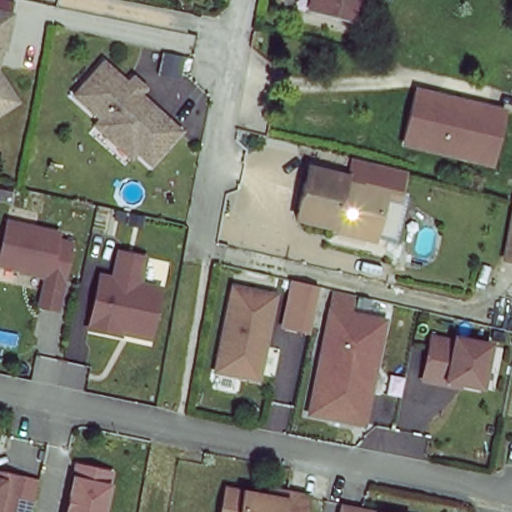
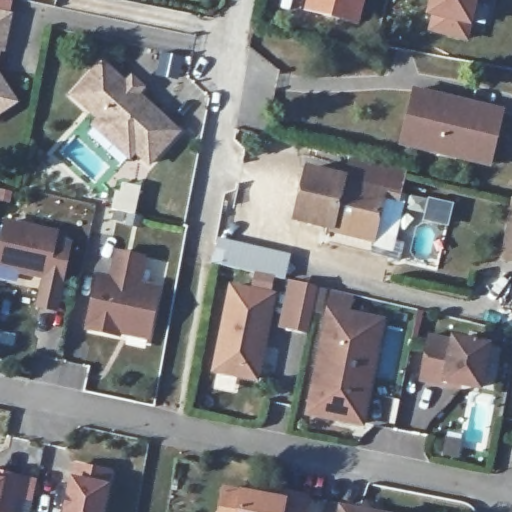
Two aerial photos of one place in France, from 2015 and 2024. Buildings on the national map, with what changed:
unchanged [(356,20),(307,7),(308,0),(361,0),(356,20)]
new [(431,17),(427,15),(430,0),(478,0),(472,27),(468,41),(428,31),(431,17)]
unchanged [(0,47),(0,12),(8,13),(4,47),(0,47)]
unchanged [(95,123),(102,116),(75,93),(102,60),(127,81),(133,75),(144,83),(138,91),(180,127),(152,160),(137,147),(133,154),(95,123)]
unchanged [(0,75),(18,100),(0,114),(0,75)]
unchanged [(500,112),(490,158),(473,154),(472,161),(433,152),(435,146),(400,138),(412,90),(500,112)]
unchanged [(357,192),(361,167),(402,176),(397,200),(382,197),(357,192)]
unchanged [(372,240),(333,229),(331,236),(292,225),(303,172),(345,181),(345,188),(357,192),(382,197),(372,240)]
unchanged [(500,254),(512,204),(512,205),(512,257),(500,254)]
unchanged [(68,278),(60,313),(35,306),(42,278),(0,266),(0,244),(6,221),(82,243),(72,280),(68,278)]
unchanged [(123,331),(92,326),(100,273),(115,275),(118,248),(143,253),(141,280),(161,282),(155,325),(153,336),(123,331)]
unchanged [(278,296),(260,380),(218,371),(237,287),(278,296)]
unchanged [(365,423),(310,412),(332,308),(387,322),(380,353),(372,389),(365,423)]
unchanged [(488,346),(480,388),(445,381),(445,385),(422,379),(430,337),(454,342),(455,338),(488,346)]
unchanged [(104,512),(68,512),(75,469),(111,475),(104,512)]
unchanged [(0,512),(0,481),(3,481),(4,475),(28,479),(22,512),(0,512)]
unchanged [(223,512),(227,489),(270,497),(270,489),(288,492),(310,496),(308,512),(223,512)]
unchanged [(344,512),(345,507),(367,512),(344,512)]

